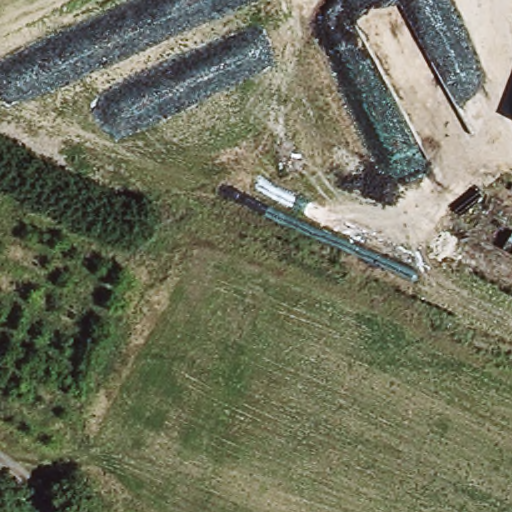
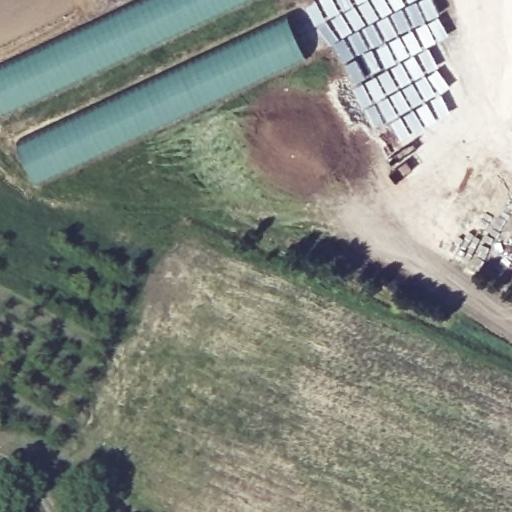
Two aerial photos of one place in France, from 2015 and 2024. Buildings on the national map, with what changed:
new [(0,105),(0,67),(145,0),(244,0),(4,114),(0,105)]
new [(289,17),(306,55),(36,183),(20,144),(289,17)]

